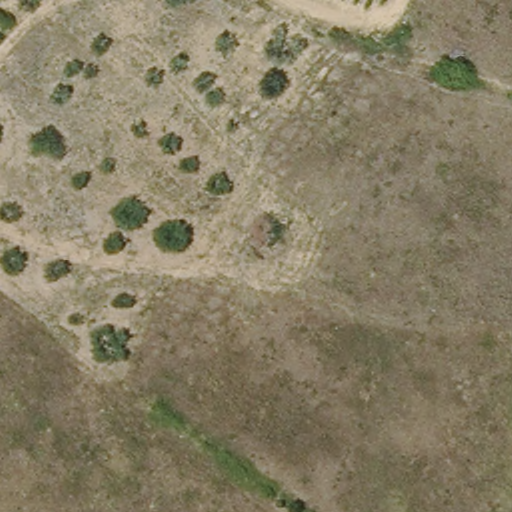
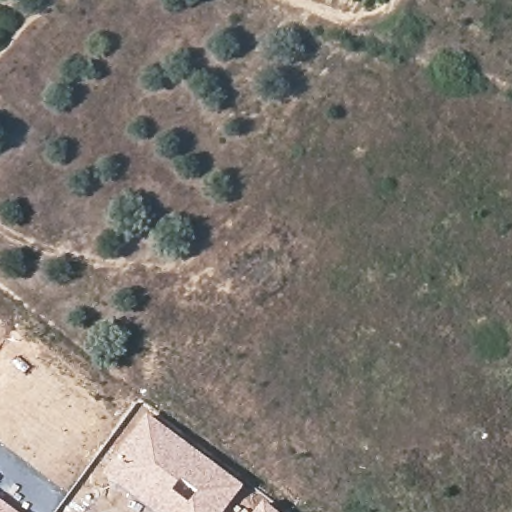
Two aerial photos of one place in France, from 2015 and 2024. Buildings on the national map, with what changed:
new [(243,485),(223,512),(154,512),(97,468),(145,412),(243,485)]
new [(0,512),(0,500),(16,512),(0,512)]

